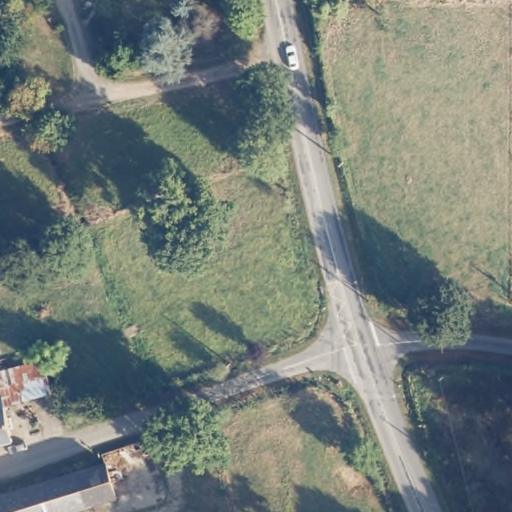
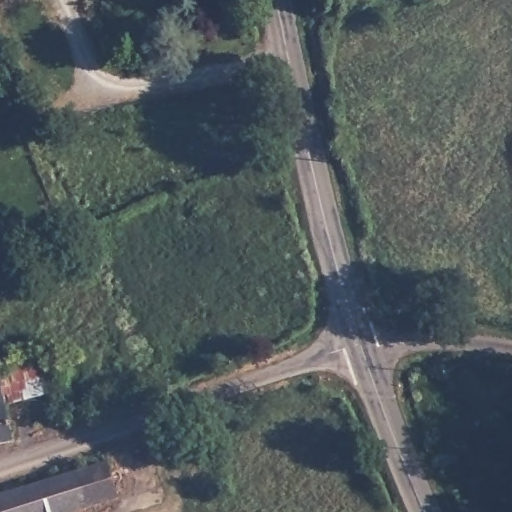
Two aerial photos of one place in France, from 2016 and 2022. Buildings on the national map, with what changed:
unchanged [(10,438),(0,440),(0,386),(1,386),(10,438)]
unchanged [(0,496),(108,463),(118,498),(72,512),(0,512),(0,496)]

